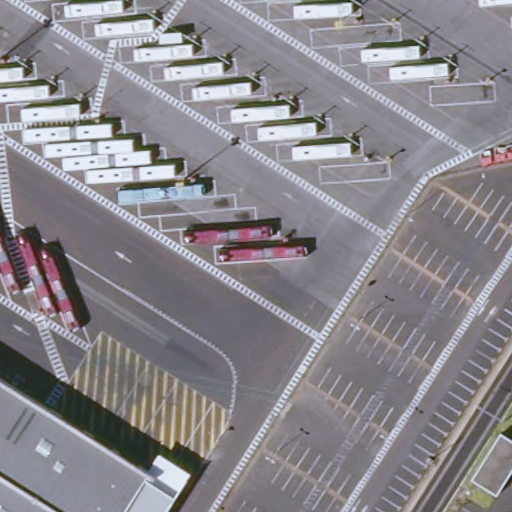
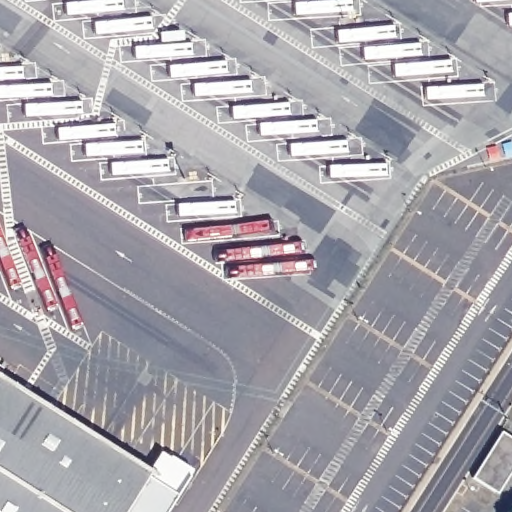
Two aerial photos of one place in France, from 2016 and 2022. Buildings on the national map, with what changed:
unchanged [(150,471),(145,477),(124,512),(0,512),(0,379),(150,471)]
unchanged [(512,439),(512,480),(501,497),(476,481),(505,435),(512,439)]
unchanged [(124,512),(145,477),(150,471),(158,456),(187,475),(164,512),(124,512)]

